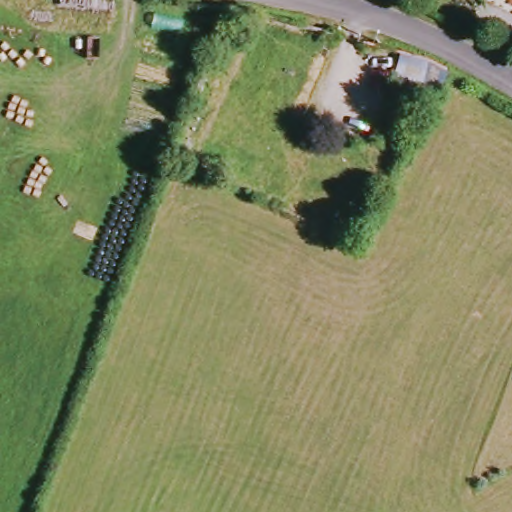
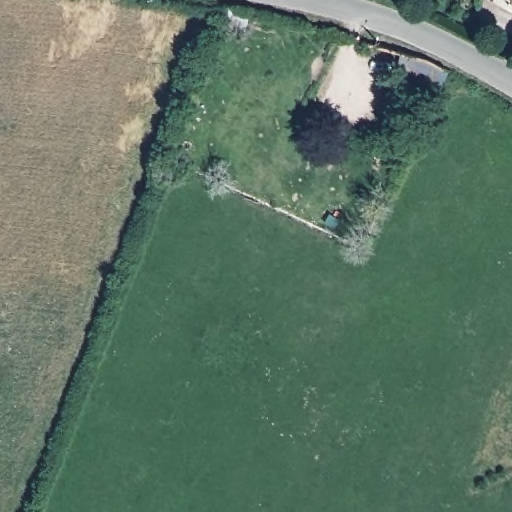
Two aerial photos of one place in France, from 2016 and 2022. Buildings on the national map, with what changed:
unchanged [(498,0),(501,0),(500,1),(498,0)]
unchanged [(452,93),(402,82),(407,59),(436,64),(456,76),(452,93)]

